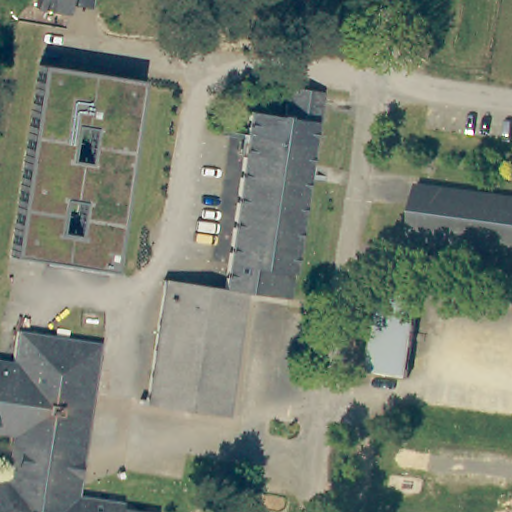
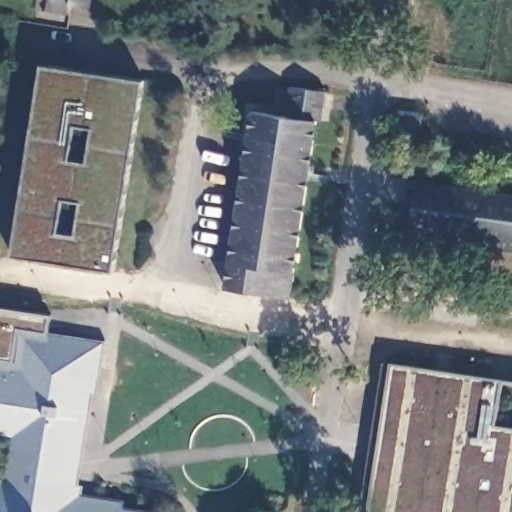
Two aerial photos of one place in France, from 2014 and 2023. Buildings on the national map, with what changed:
unchanged [(69,12),(36,7),(38,0),(89,0),(88,6),(70,3),(69,12)]
unchanged [(38,65),(141,81),(110,271),(13,256),(38,65)]
unchanged [(251,110),(285,115),(289,86),(324,91),(321,111),(315,110),(288,297),(246,291),(246,292),(224,288),(251,110)]
unchanged [(512,201),(512,256),(408,242),(416,189),(512,201)]
demolished [(224,288),(246,292),(227,415),(146,403),(164,279),(224,288)]
demolished [(420,298),(409,381),(370,376),(381,293),(420,298)]
new [(47,333),(18,329),(13,362),(0,360),(0,307),(50,315),(47,333)]
unchanged [(18,329),(102,342),(79,495),(122,501),(121,507),(151,512),(0,512),(0,360),(13,362),(18,329)]
new [(393,368),(501,384),(495,430),(512,432),(512,512),(360,512),(381,367),(393,368)]

